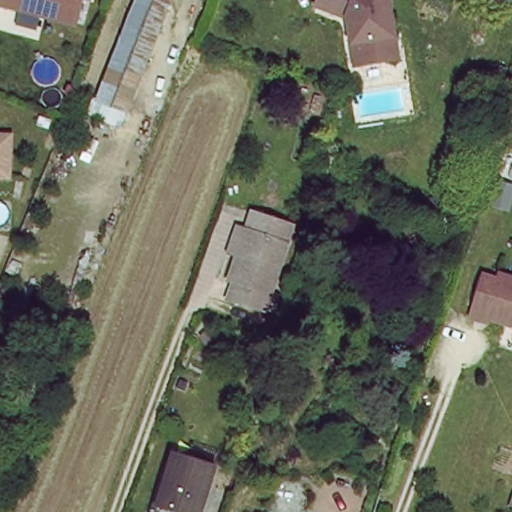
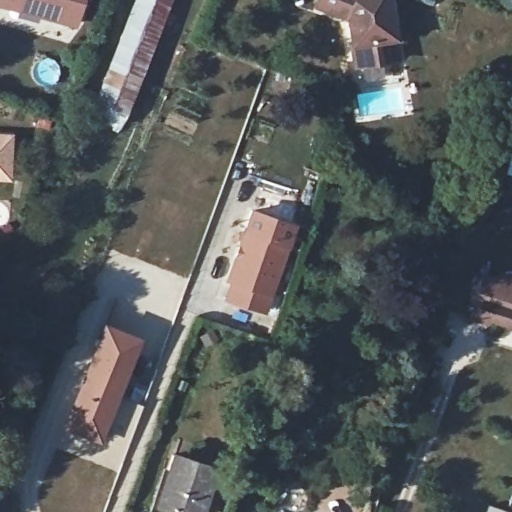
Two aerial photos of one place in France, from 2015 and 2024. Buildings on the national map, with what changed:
unchanged [(0,0),(76,0),(71,21),(37,11),(15,5),(0,1),(0,0)]
unchanged [(110,79),(140,0),(170,0),(137,89),(110,79)]
unchanged [(353,65),(344,15),(315,6),(316,0),(381,0),(388,36),(392,56),(385,58),(353,65)]
unchanged [(8,174),(0,174),(0,133),(10,133),(8,174)]
unchanged [(295,222),(266,312),(228,302),(235,282),(232,281),(239,258),(229,255),(236,229),(248,232),(255,211),(295,222)]
unchanged [(471,314),(482,272),(495,275),(495,270),(512,274),(512,320),(488,315),(487,318),(471,314)]
new [(101,321),(140,336),(99,442),(62,427),(101,321)]
unchanged [(159,499),(165,500),(180,452),(220,464),(205,511),(183,505),(181,512),(157,512),(159,499)]

